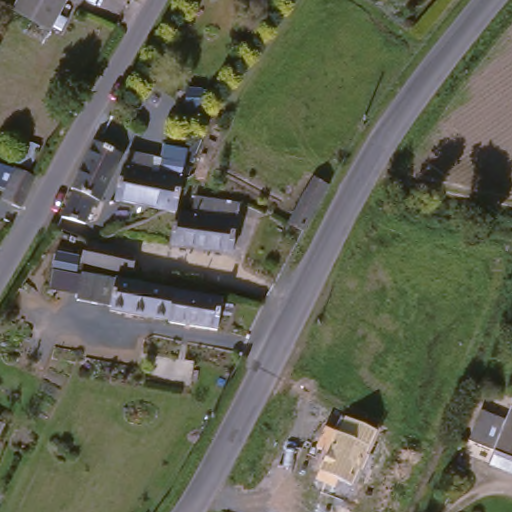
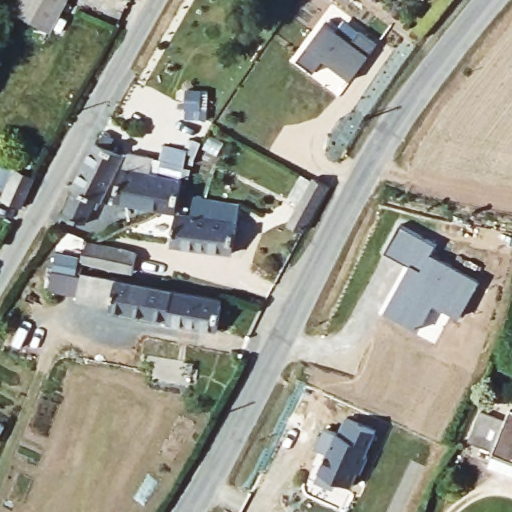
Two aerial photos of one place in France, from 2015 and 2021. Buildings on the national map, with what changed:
unchanged [(19,6),(22,0),(68,0),(55,25),(19,6)]
new [(298,59),(325,21),(353,41),(360,31),(377,44),(351,79),(324,59),(315,72),(298,59)]
unchanged [(67,211),(80,184),(77,183),(101,135),(104,136),(129,149),(106,197),(102,194),(91,219),(67,211)]
unchanged [(170,204),(121,195),(129,163),(134,148),(167,154),(170,140),(194,145),(187,174),(182,207),(170,204)]
unchanged [(40,172),(27,203),(7,194),(20,163),(40,172)]
unchanged [(303,231),(288,223),(298,204),(313,177),(329,185),(303,231)]
unchanged [(197,209),(200,191),(245,199),(237,249),(176,238),(182,207),(197,209)]
new [(400,226),(437,246),(431,257),(478,283),(459,319),(433,305),(419,332),(385,313),(410,268),(385,254),(400,226)]
unchanged [(93,242),(98,244),(142,253),(139,272),(86,261),(93,242)]
unchanged [(77,271),(79,262),(86,264),(85,273),(77,271)]
unchanged [(222,330),(174,322),(174,320),(116,310),(116,306),(82,300),(87,274),(120,279),(195,293),(215,296),(228,299),(222,330)]
unchanged [(500,448),(498,448),(498,445),(474,435),(486,406),(511,416),(512,413),(512,468),(494,461),(500,448)]
unchanged [(338,481),(337,489),(315,481),(320,472),(315,469),(323,450),(315,448),(325,427),(338,432),(345,416),(379,433),(355,488),(338,481)]
unchanged [(2,439),(0,438),(0,420),(10,426),(2,439)]

